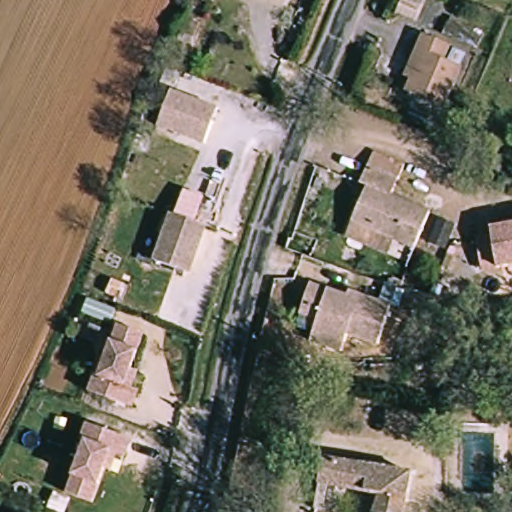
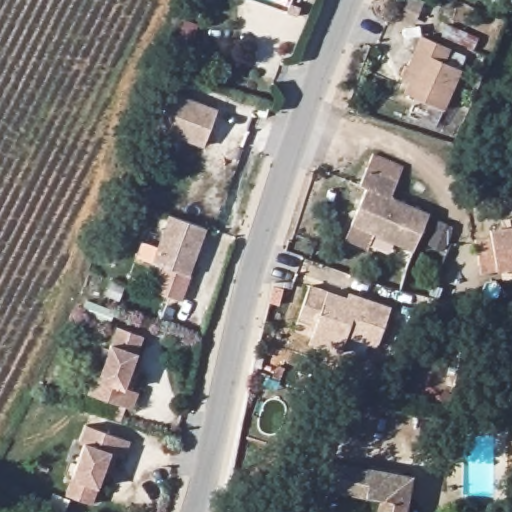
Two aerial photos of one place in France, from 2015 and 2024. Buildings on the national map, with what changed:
unchanged [(387,0),(437,0),(424,36),(379,20),(387,0)]
unchanged [(456,67),(445,107),(409,97),(420,57),(411,54),(415,38),(447,47),(444,63),(456,67)]
unchanged [(204,147),(158,136),(166,100),(213,112),(204,147)]
unchanged [(404,167),(390,203),(428,217),(415,255),(362,234),(350,227),(365,192),(358,189),(372,157),(384,161),(404,167)]
unchanged [(185,274),(152,266),(163,217),(197,226),(185,274)]
unchanged [(498,271),(481,272),(475,241),(494,239),(492,229),(512,226),(512,268),(498,271)]
unchanged [(331,354),(326,352),(303,342),(308,322),(295,316),(307,290),(348,306),(383,315),(370,347),(340,341),(336,351),(331,354)]
unchanged [(384,307),(383,311),(350,301),(341,297),(343,292),(384,307)]
unchanged [(148,334),(141,353),(136,352),(130,370),(140,373),(137,385),(141,387),(136,404),(94,389),(116,322),(148,334)]
unchanged [(135,437),(129,457),(113,452),(107,471),(104,470),(94,502),(69,493),(89,421),(135,437)]
unchanged [(372,502),(314,492),(318,462),(411,477),(404,512),(370,512),(372,502)]

